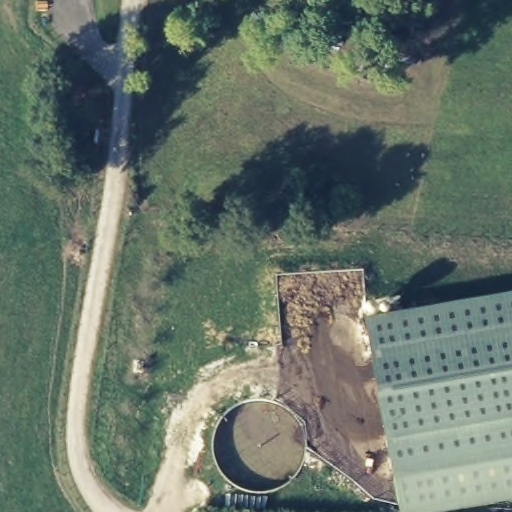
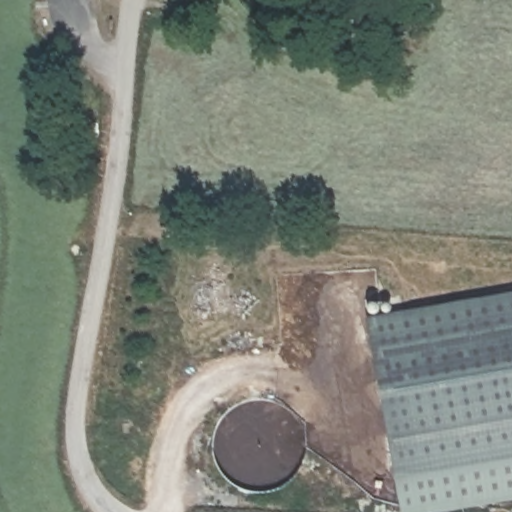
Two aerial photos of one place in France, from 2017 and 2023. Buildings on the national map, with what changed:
unchanged [(512,294),(512,456),(394,476),(369,320),(512,294)]
unchanged [(512,456),(512,499),(432,512),(401,512),(394,476),(512,456)]

